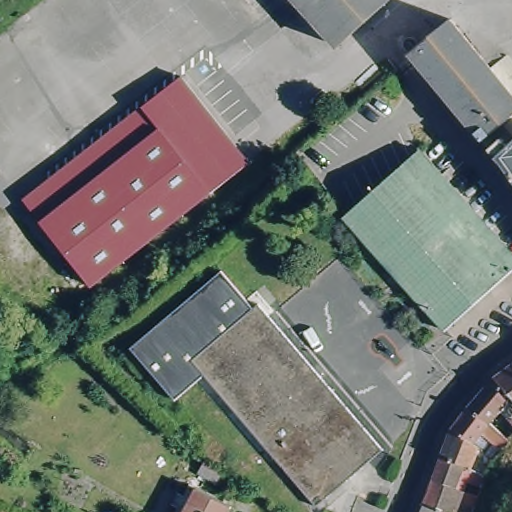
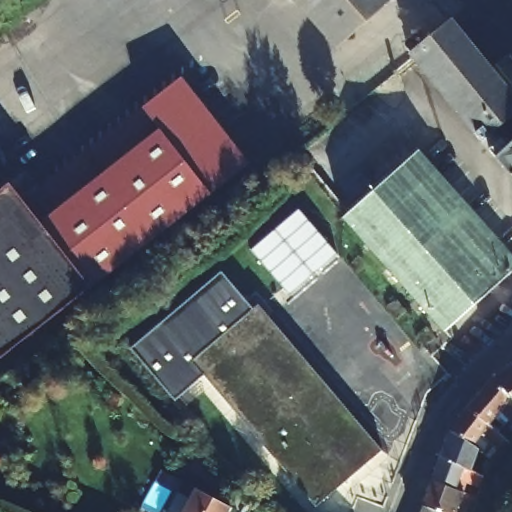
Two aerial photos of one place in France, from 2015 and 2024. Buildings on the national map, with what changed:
unchanged [(341,47),(295,0),(389,0),(368,21),(341,47)]
unchanged [(450,21),(475,51),(435,86),(409,55),(450,21)]
unchanged [(459,114),(435,86),(475,51),(512,97),(512,116),(502,124),(512,136),(512,178),(507,172),(459,114)]
unchanged [(249,164),(211,194),(91,287),(41,221),(23,199),(143,107),(183,76),(249,164)]
unchanged [(512,268),(512,270),(441,333),(341,216),(417,152),(512,268)]
new [(41,221),(91,287),(0,358),(0,357),(0,191),(10,183),(23,199),(41,221)]
new [(295,300),(257,254),(306,214),(345,258),(295,300)]
unchanged [(170,397),(127,343),(217,270),(248,307),(185,360),(198,375),(170,397)]
unchanged [(253,302),(375,450),(307,507),(198,375),(185,360),(248,307),(253,302)]
unchanged [(512,368),(512,406),(493,382),(512,368)]
unchanged [(512,436),(506,432),(510,426),(500,413),(487,427),(466,412),(493,382),(512,406),(512,436)]
unchanged [(424,510),(421,509),(426,497),(431,484),(440,460),(449,437),(450,435),(466,412),(487,427),(507,446),(509,447),(508,448),(501,456),(480,438),(470,450),(476,455),(472,468),(485,475),(485,476),(482,481),(485,483),(480,492),(459,482),(454,493),(476,505),(474,512),(468,512),(458,508),(457,512),(423,512),(424,510)]
unchanged [(230,478),(225,489),(196,472),(202,462),(230,478)]
unchanged [(230,507),(227,512),(183,512),(195,488),(230,507)]

